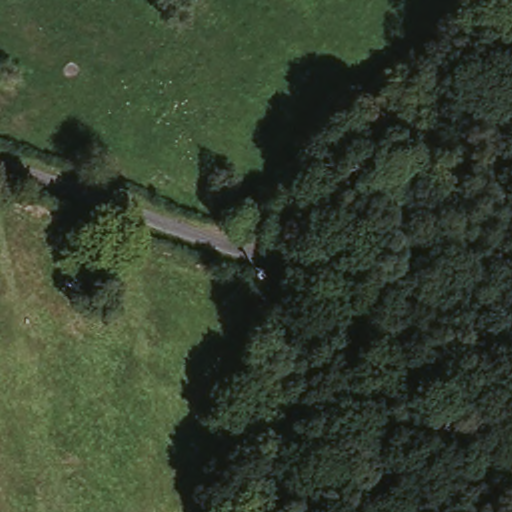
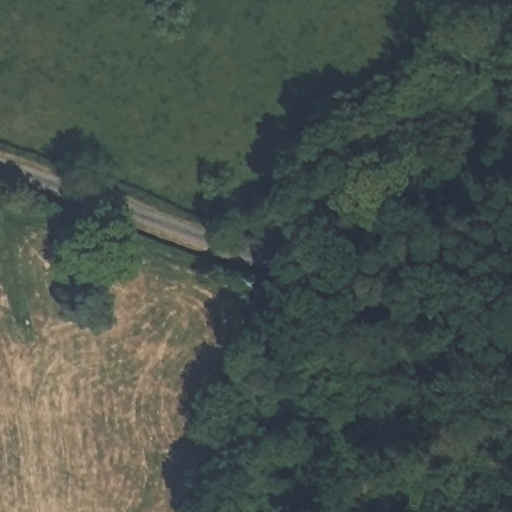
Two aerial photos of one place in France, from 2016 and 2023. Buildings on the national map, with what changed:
[]

